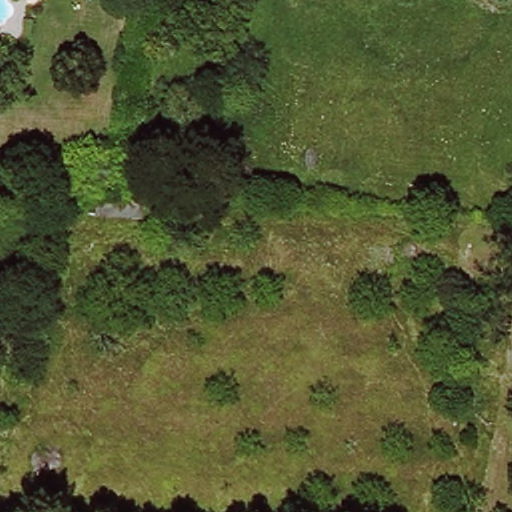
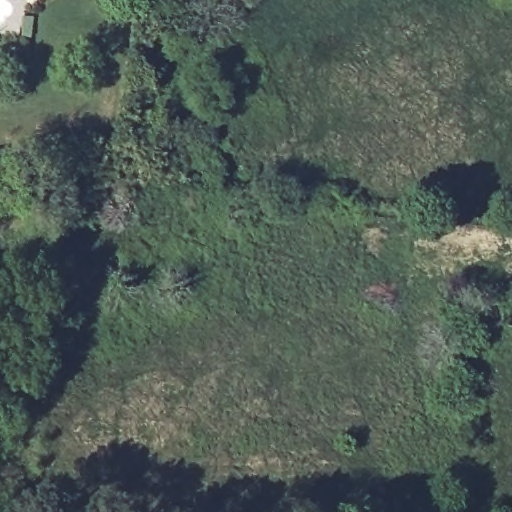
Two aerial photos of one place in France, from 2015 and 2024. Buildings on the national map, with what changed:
unchanged [(114,210),(98,208),(99,191),(108,192),(114,192),(114,210)]

